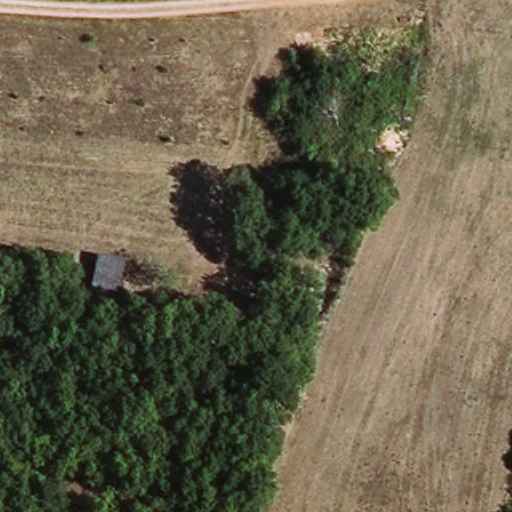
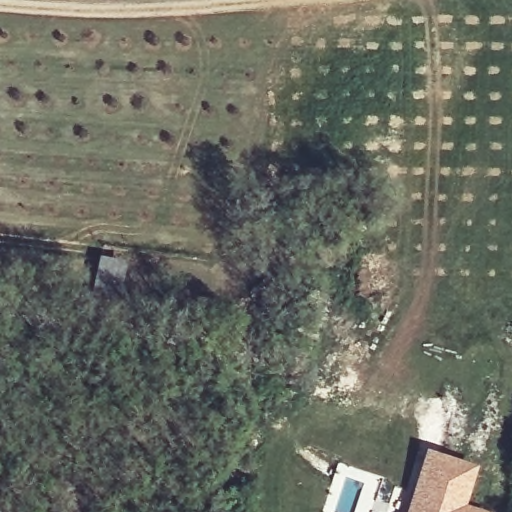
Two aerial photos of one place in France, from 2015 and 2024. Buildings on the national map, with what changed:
unchanged [(119,263),(107,309),(84,304),(94,257),(119,263)]
unchanged [(172,304),(170,322),(150,319),(153,302),(172,304)]
new [(410,507),(409,493),(420,454),(457,465),(470,469),(457,511),(462,509),(472,512),(409,512),(410,507)]

